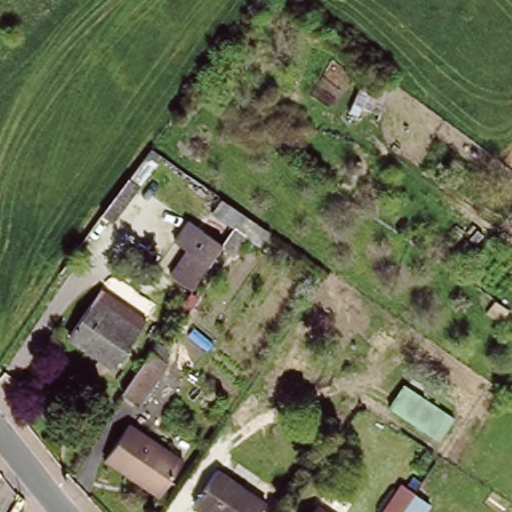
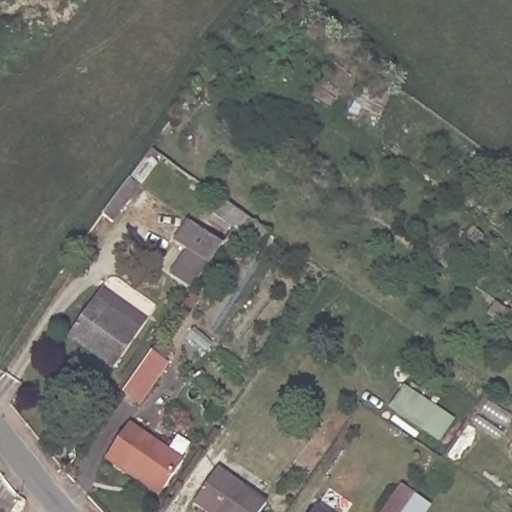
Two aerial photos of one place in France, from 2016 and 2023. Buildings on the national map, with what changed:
unchanged [(365,75),(397,90),(385,114),(355,102),(365,75)]
unchanged [(258,252),(232,234),(210,218),(219,205),(242,221),(267,238),(258,252)]
unchanged [(99,220),(104,213),(114,221),(109,228),(99,220)]
unchanged [(209,242),(230,257),(201,299),(200,301),(178,287),(179,285),(209,242)]
unchanged [(96,356),(66,334),(98,290),(111,300),(101,314),(133,337),(115,363),(111,367),(96,356)]
unchanged [(138,405),(122,394),(149,354),(156,345),(170,354),(162,364),(165,366),(138,405)]
unchanged [(387,406),(402,384),(453,419),(437,442),(387,406)]
unchanged [(158,493),(105,456),(129,422),(182,458),(158,493)]
unchanged [(263,500),(255,512),(217,512),(213,510),(211,512),(210,512),(193,501),(216,467),(263,500)]
unchanged [(422,512),(401,512),(415,491),(430,501),(422,512)]
unchanged [(317,504),(328,512),(311,512),(317,504)]

